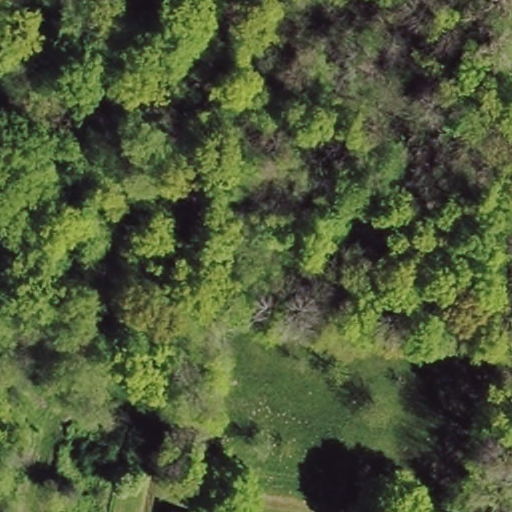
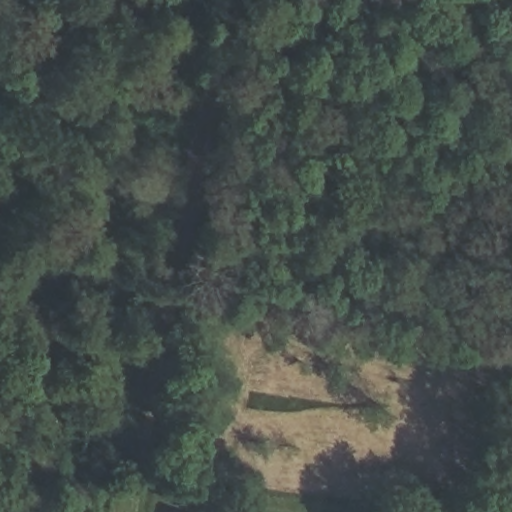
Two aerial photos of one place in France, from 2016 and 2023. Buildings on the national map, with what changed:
unchanged [(200,511),(200,512),(170,512),(171,506),(200,511)]

